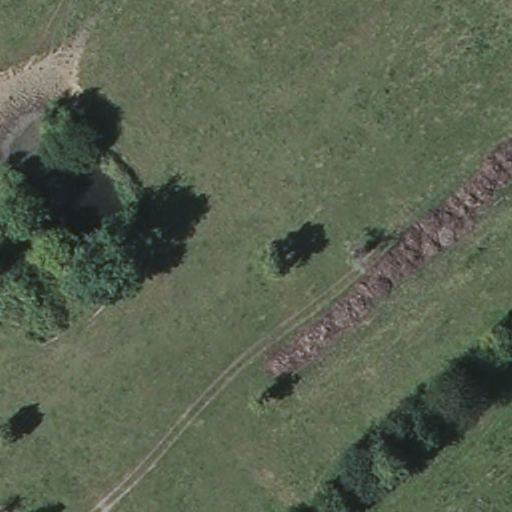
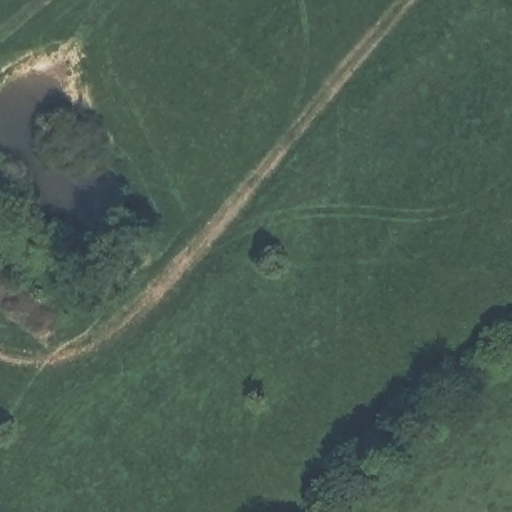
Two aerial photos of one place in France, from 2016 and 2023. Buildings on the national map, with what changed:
unchanged [(8,266),(29,289),(3,312),(0,310),(0,270),(1,272),(8,266)]

